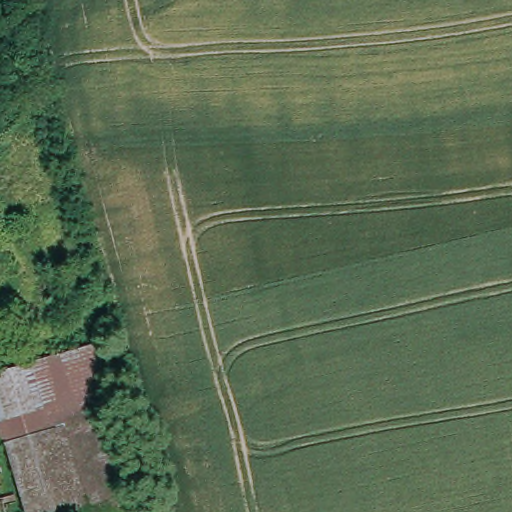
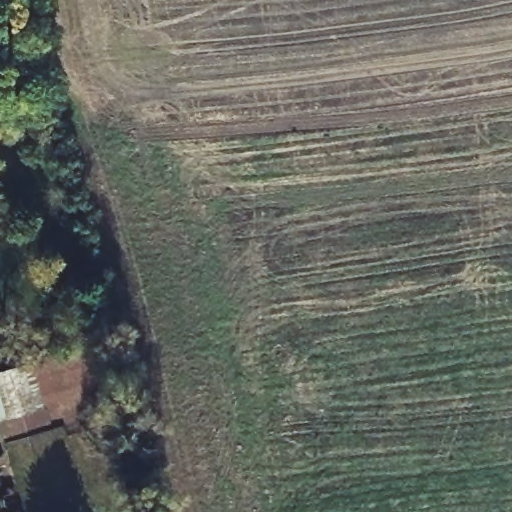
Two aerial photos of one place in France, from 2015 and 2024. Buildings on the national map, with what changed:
unchanged [(119,423),(123,422),(144,506),(126,512),(26,512),(0,426),(0,372),(95,345),(119,423)]

